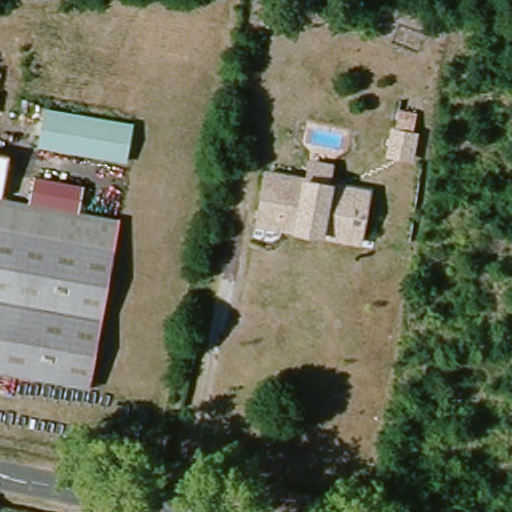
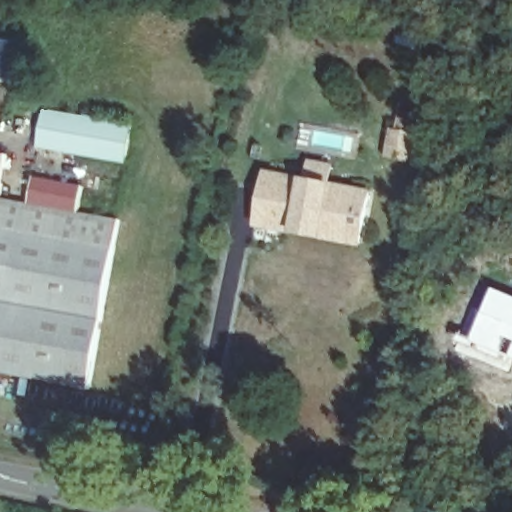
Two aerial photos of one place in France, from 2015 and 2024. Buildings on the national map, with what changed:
unchanged [(36,147),(44,108),(136,125),(127,166),(36,147)]
unchanged [(402,157),(407,133),(408,133),(410,122),(426,125),(423,136),(426,137),(421,161),(402,157)]
unchanged [(0,187),(0,150),(7,152),(0,187)]
unchanged [(290,222),(275,219),(278,196),(260,192),(263,175),(300,182),(302,182),(305,165),(331,170),(327,187),(366,194),(357,234),(290,222)]
unchanged [(29,201),(34,178),(84,187),(79,210),(29,201)]
unchanged [(278,196),(275,219),(290,222),(357,234),(356,245),(287,232),(253,226),(260,192),(278,196)]
unchanged [(0,372),(0,195),(122,217),(91,388),(0,372)]
new [(462,333),(473,338),(497,287),(512,293),(512,359),(508,357),(505,367),(456,347),(462,333)]

